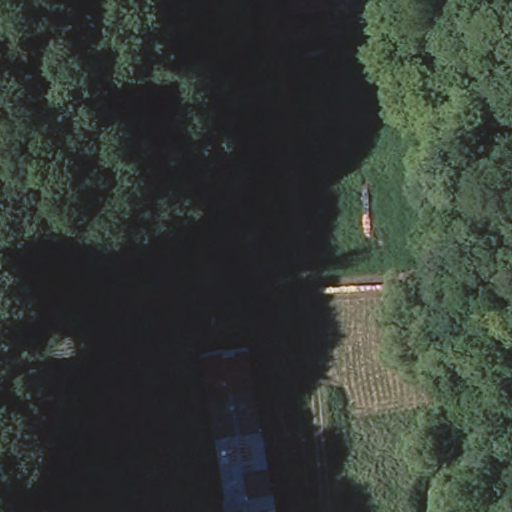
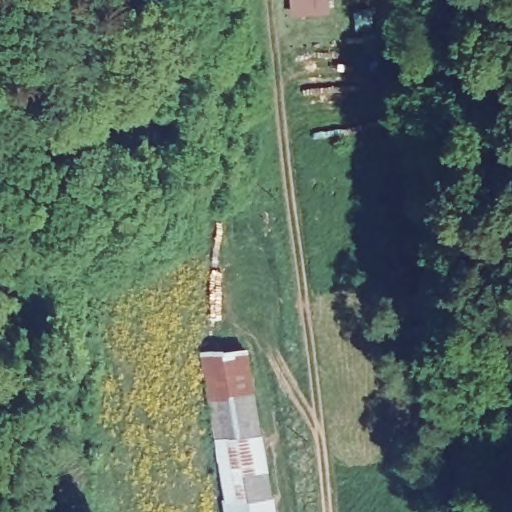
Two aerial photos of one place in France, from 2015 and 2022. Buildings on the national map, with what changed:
new [(291,15),(290,0),(329,0),(330,13),(291,15)]
unchanged [(276,512),(225,512),(223,502),(225,501),(202,358),(250,349),(276,512)]

